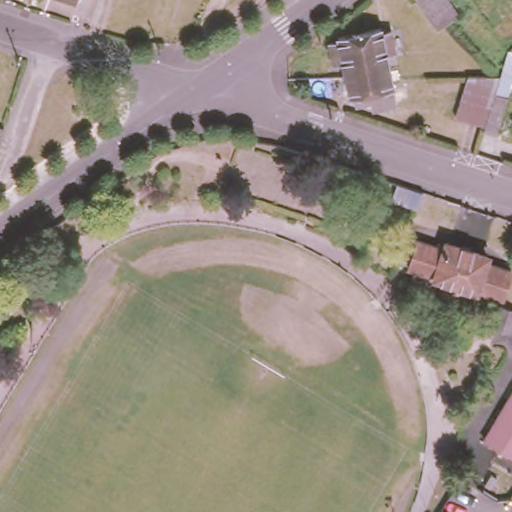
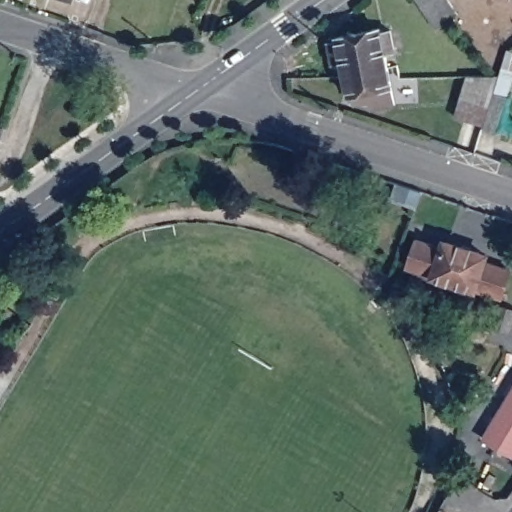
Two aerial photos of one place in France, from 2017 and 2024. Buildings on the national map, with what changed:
unchanged [(430,22),(414,0),(448,0),(457,14),(435,29),(430,22)]
unchanged [(387,80),(370,84),(372,92),(350,96),(349,89),(344,89),(339,62),(338,56),(330,57),(325,37),(334,35),(332,29),(353,25),(375,21),(376,26),(385,25),(389,44),(380,47),(382,53),(384,61),(387,80)]
unchanged [(465,78),(497,77),(500,71),(512,74),(512,93),(497,134),(480,131),(482,127),(452,121),(465,78)]
unchanged [(412,207),(387,198),(394,181),(418,189),(412,207)]
unchanged [(414,239),(440,247),(442,241),(482,255),(480,261),(507,270),(497,298),(405,267),(414,239)]
unchanged [(512,313),(512,336),(489,328),(494,311),(495,306),(507,311),(512,313)]
unchanged [(480,438),(512,385),(512,457),(480,438)]
unchanged [(447,512),(436,512),(439,507),(447,512)]

